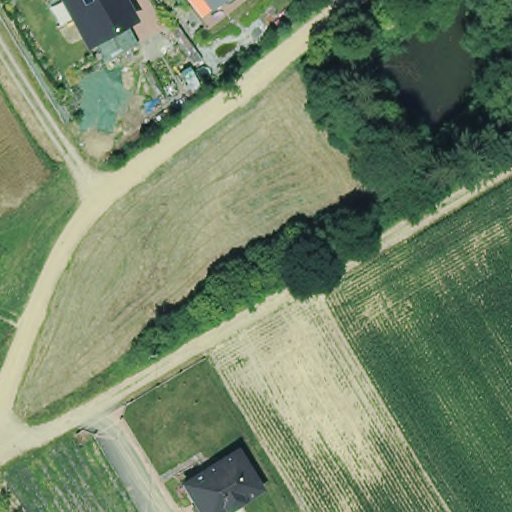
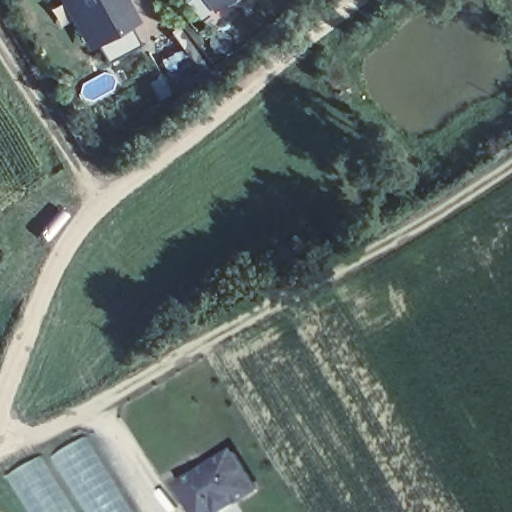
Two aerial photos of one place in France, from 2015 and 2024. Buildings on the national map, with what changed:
unchanged [(138,21),(88,51),(66,0),(127,0),(138,21)]
unchanged [(245,3),(205,33),(185,3),(189,0),(188,0),(243,0),(245,3)]
new [(137,512),(27,512),(6,475),(90,430),(137,512)]
unchanged [(238,448),(262,486),(240,499),(248,512),(203,512),(184,481),(238,448)]

